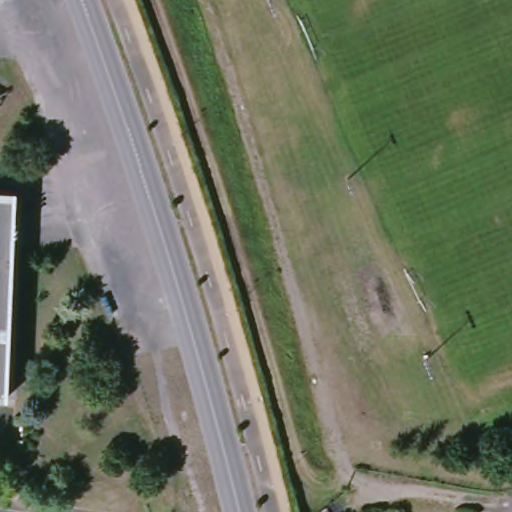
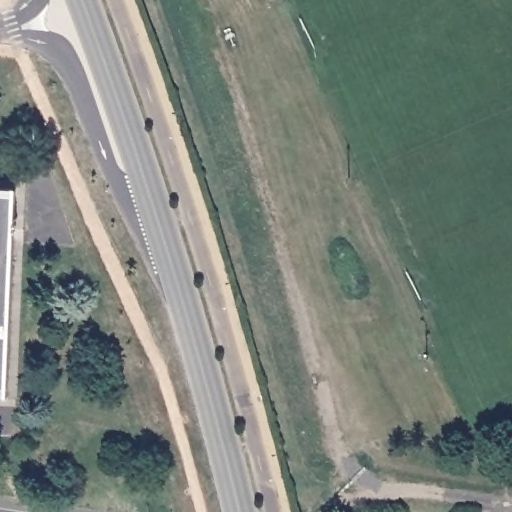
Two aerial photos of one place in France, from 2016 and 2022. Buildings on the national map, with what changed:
unchanged [(8,396),(0,395),(0,187),(17,187),(8,396)]

